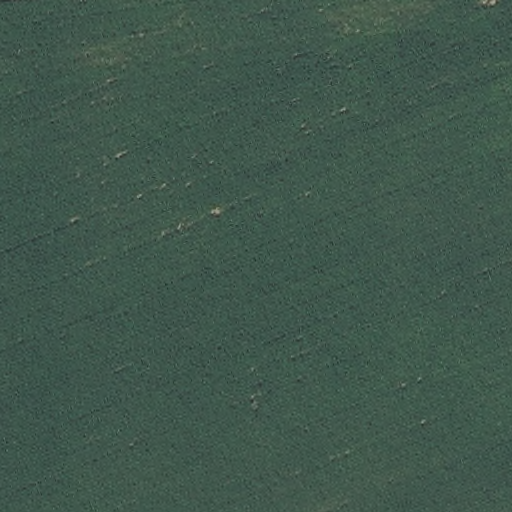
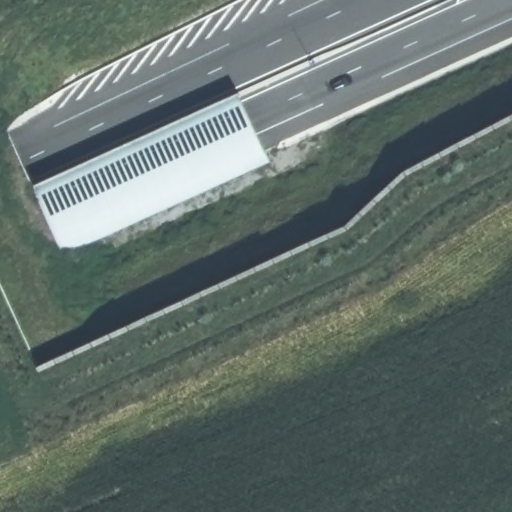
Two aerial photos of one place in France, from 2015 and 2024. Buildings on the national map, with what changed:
new [(236,94),(268,163),(119,230),(61,254),(30,186),(236,94)]

